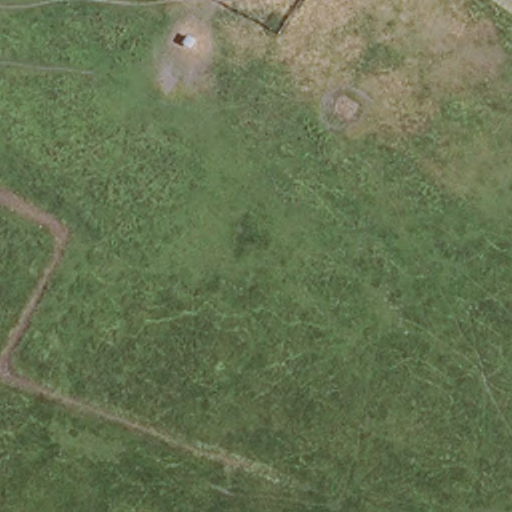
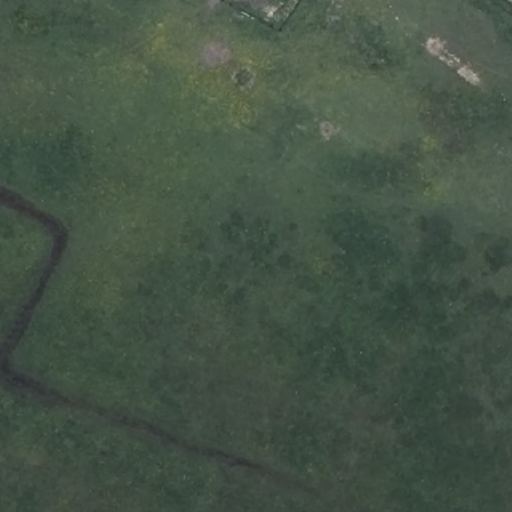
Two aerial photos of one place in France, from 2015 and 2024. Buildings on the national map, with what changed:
[]

